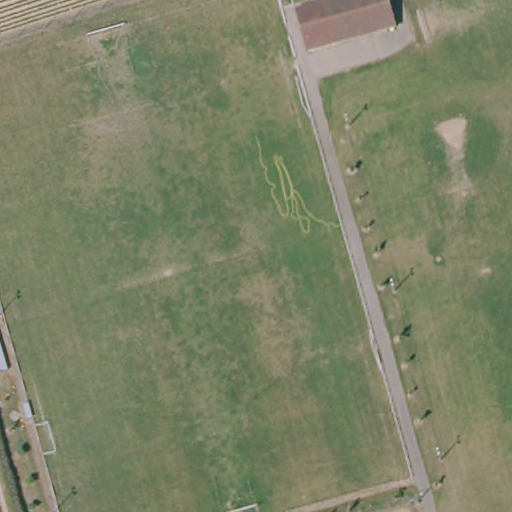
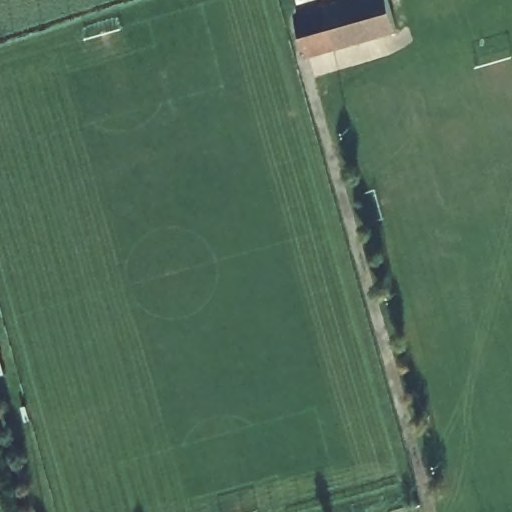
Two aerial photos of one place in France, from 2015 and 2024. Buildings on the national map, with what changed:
unchanged [(329,0),(406,0),(413,21),(330,44),(322,47),(310,5),(318,3),(329,0)]

